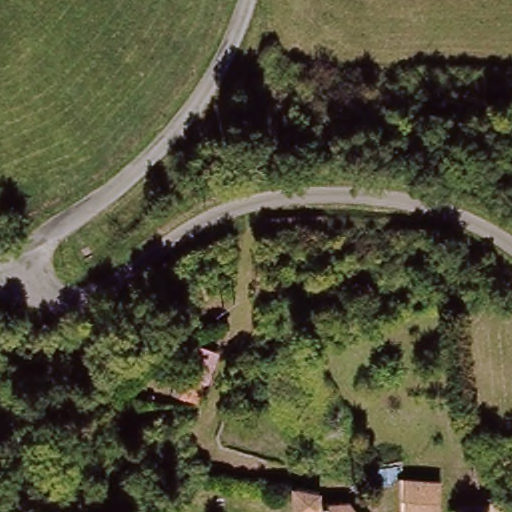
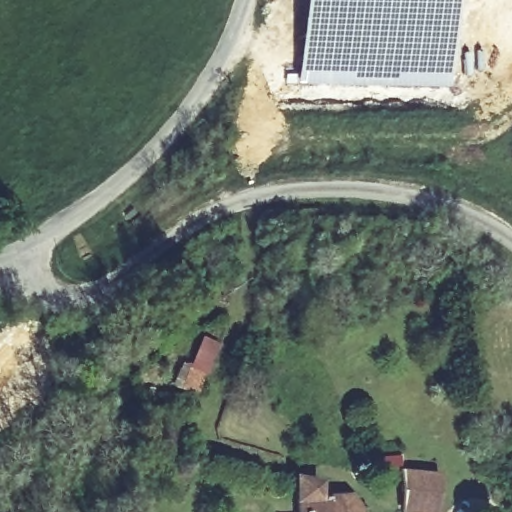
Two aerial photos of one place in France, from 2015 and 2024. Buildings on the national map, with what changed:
new [(455,0),(455,48),(453,90),(362,85),(299,84),(301,0),(455,0)]
unchanged [(219,345),(202,396),(173,386),(192,336),(219,345)]
unchanged [(438,509),(403,505),(405,468),(440,472),(438,509)]
unchanged [(331,492),(332,502),(359,501),(363,510),(363,512),(304,512),(304,491),(331,492)]

